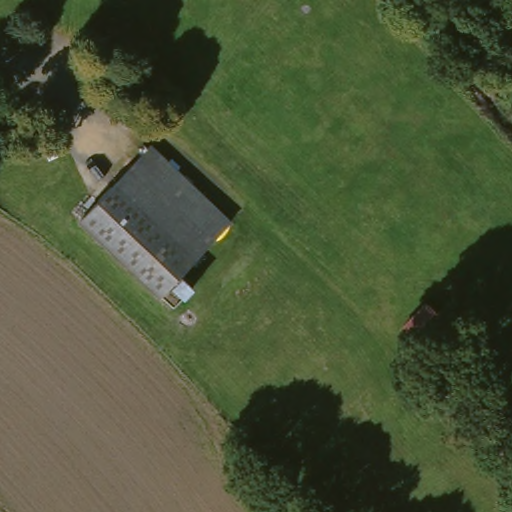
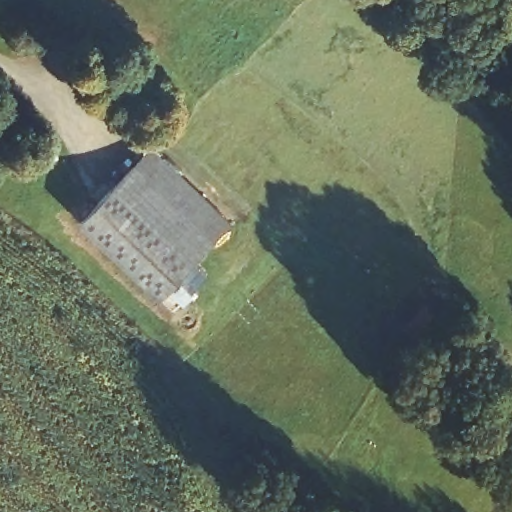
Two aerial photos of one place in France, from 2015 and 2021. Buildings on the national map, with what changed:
unchanged [(129,196),(144,180),(133,169),(151,150),(228,224),(195,260),(129,196)]
unchanged [(184,300),(170,287),(160,296),(81,220),(133,169),(144,180),(129,196),(195,260),(179,277),(193,290),(184,300)]

